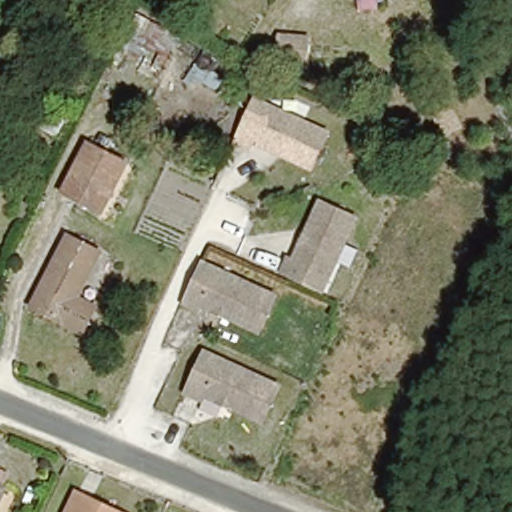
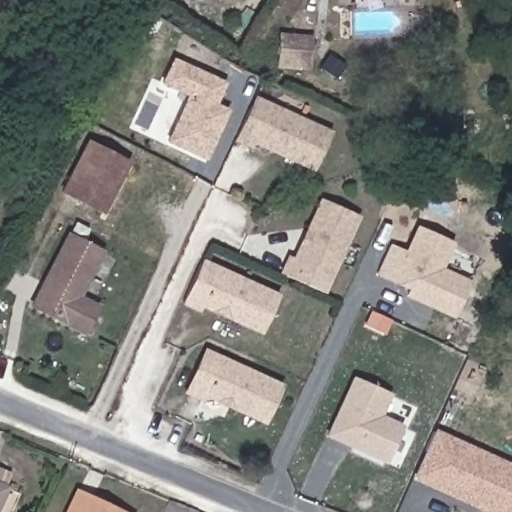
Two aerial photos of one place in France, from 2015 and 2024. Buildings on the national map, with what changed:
unchanged [(298,61),(273,59),(275,36),(300,38),(298,61)]
new [(205,161),(164,141),(186,95),(160,83),(172,56),(225,82),(216,103),(228,108),(205,161)]
unchanged [(330,132),(312,169),(282,154),(279,148),(273,145),(266,147),(254,141),(251,145),(236,138),(255,97),(330,132)]
unchanged [(100,213),(60,194),(85,146),(125,165),(100,213)]
unchanged [(286,272),(292,255),(297,257),(302,245),(309,241),(312,235),(309,228),(322,197),(359,213),(328,289),(286,272)]
new [(452,319),(404,296),(407,289),(374,275),(387,244),(404,251),(416,225),(452,242),(441,267),(469,280),(452,319)]
unchanged [(75,295),(98,307),(86,333),(32,305),(69,238),(97,251),(75,295)]
unchanged [(279,296),(263,333),(232,319),(229,312),(223,310),(216,312),(203,306),(201,311),(185,304),(204,262),(279,296)]
unchanged [(281,384),(265,421),(234,406),(231,399),(225,397),(218,399),(205,393),(203,398),(187,390),(206,349),(281,384)]
new [(390,393),(382,415),(403,425),(385,464),(326,437),(353,376),(390,393)]
new [(434,429),(512,465),(512,512),(483,512),(412,479),(434,429)]
unchanged [(0,491),(0,486),(2,486),(0,491)]
unchanged [(78,492),(120,512),(69,512),(78,492)]

